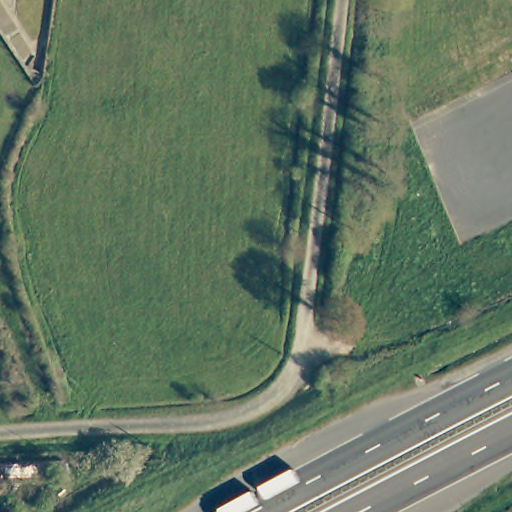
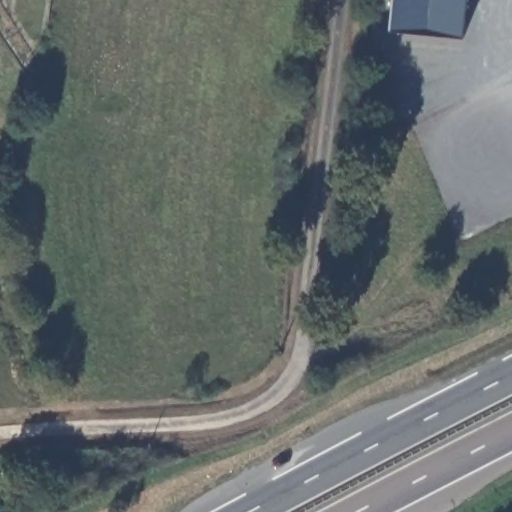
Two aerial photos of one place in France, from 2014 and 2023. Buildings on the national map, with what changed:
new [(388,34),(391,0),(467,0),(463,41),(388,34)]

